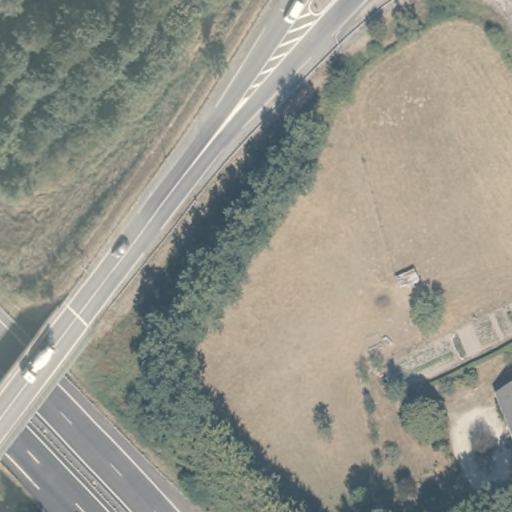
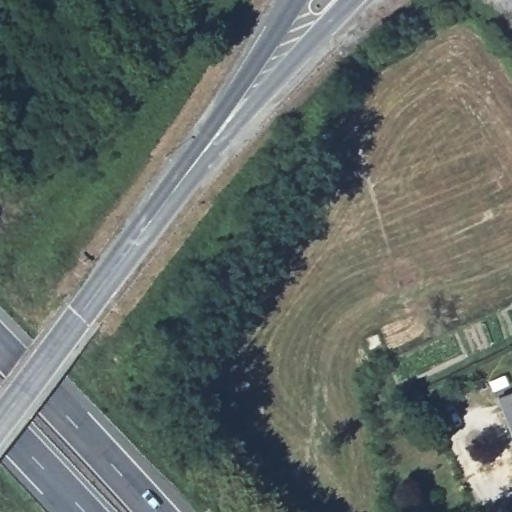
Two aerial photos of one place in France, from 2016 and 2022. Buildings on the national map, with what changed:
unchanged [(512,390),(512,434),(498,396),(512,390)]

